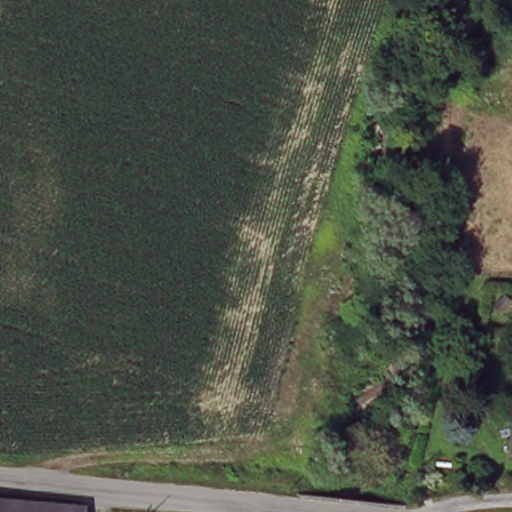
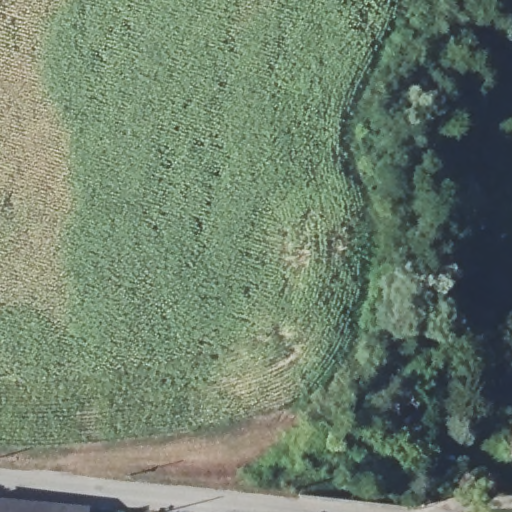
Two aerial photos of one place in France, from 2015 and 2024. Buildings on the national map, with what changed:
unchanged [(512,423),(512,444),(508,443),(512,423)]
unchanged [(0,502),(60,512),(0,512),(0,502)]

